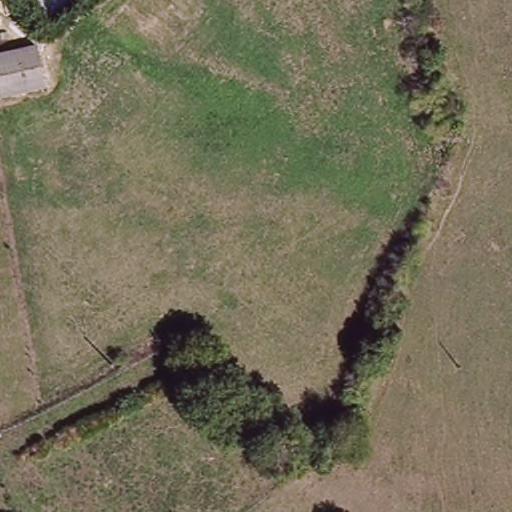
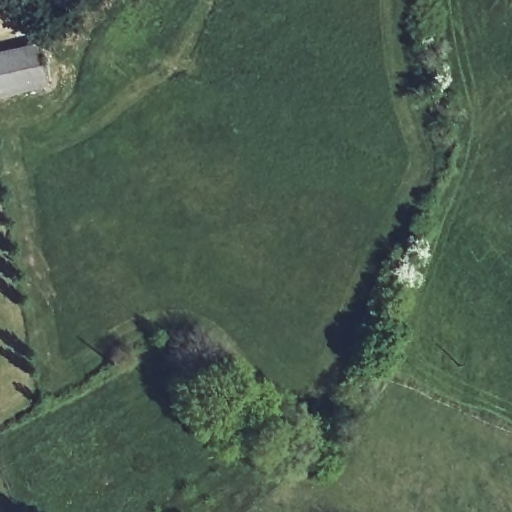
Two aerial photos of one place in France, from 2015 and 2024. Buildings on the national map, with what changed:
unchanged [(47,94),(0,102),(0,62),(40,55),(47,94)]

